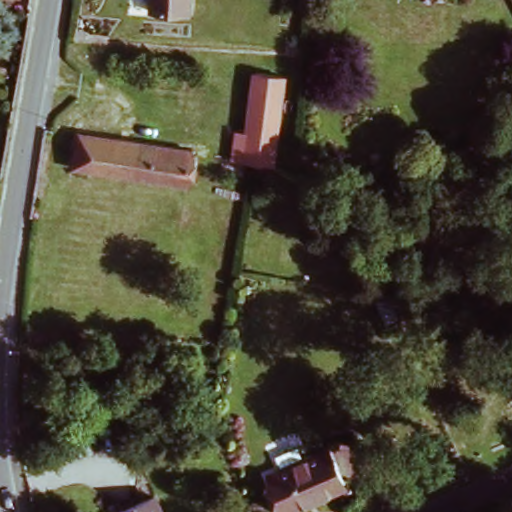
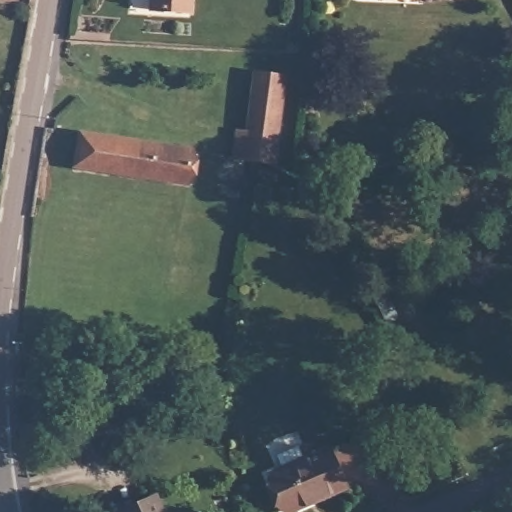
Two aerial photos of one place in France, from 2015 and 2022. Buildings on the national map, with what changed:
unchanged [(152,8),(154,0),(188,0),(186,13),(152,8)]
unchanged [(239,128),(247,128),(255,69),(290,71),(278,163),(235,160),(239,128)]
unchanged [(182,181),(75,161),(82,126),(188,146),(182,181)]
unchanged [(291,448),(298,462),(326,449),(344,488),(293,512),(284,512),(267,476),(280,469),(274,456),(291,448)]
unchanged [(169,512),(127,512),(161,496),(169,512)]

